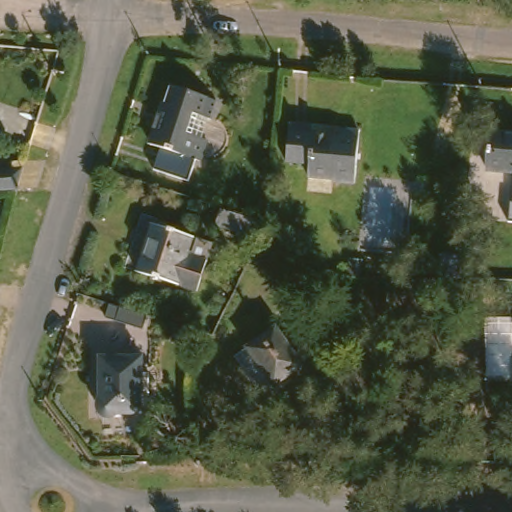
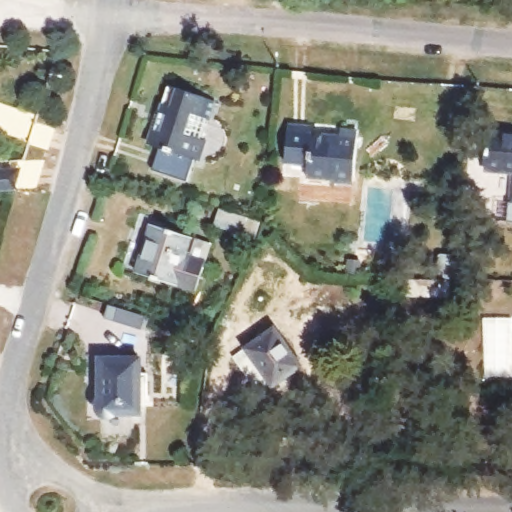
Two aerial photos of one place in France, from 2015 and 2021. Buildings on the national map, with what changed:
unchanged [(198,97),(193,113),(199,127),(189,159),(141,142),(160,85),(198,97)]
unchanged [(332,132),(333,125),(348,125),(344,179),(320,177),(321,172),(299,170),(302,130),(332,132)]
unchanged [(512,136),(512,172),(490,171),(492,135),(512,136)]
unchanged [(0,190),(0,169),(9,169),(9,189),(0,190)]
unchanged [(260,221),(256,237),(246,234),(229,227),(215,224),(220,209),(260,221)]
unchanged [(208,242),(202,260),(193,288),(138,272),(152,225),(192,237),(208,242)]
unchanged [(451,298),(406,295),(407,280),(451,280),(451,298)]
unchanged [(269,326),(296,366),(268,385),(241,345),(269,326)]
unchanged [(140,357),(139,412),(98,412),(99,357),(140,357)]

